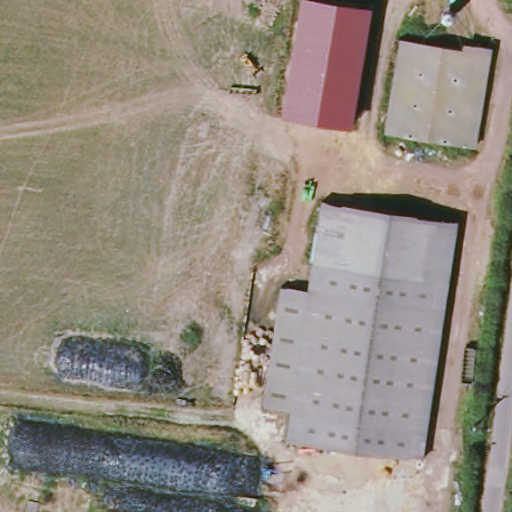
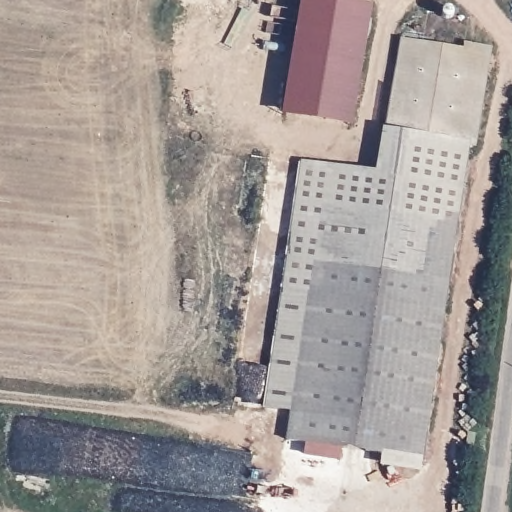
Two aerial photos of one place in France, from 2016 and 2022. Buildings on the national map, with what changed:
unchanged [(354,128),(284,117),(304,0),(320,0),(374,9),(354,128)]
unchanged [(383,134),(396,44),(472,55),(474,47),(488,49),(473,147),(383,134)]
new [(376,171),(381,135),(469,146),(458,224),(454,223),(318,207),(310,268),(284,265),(301,161),(376,171)]
unchanged [(318,207),(454,223),(446,284),(310,268),(318,207)]
unchanged [(284,265),(310,268),(291,413),(264,411),(284,265)]
unchanged [(446,284),(423,462),(288,443),(291,413),(310,268),(446,284)]

